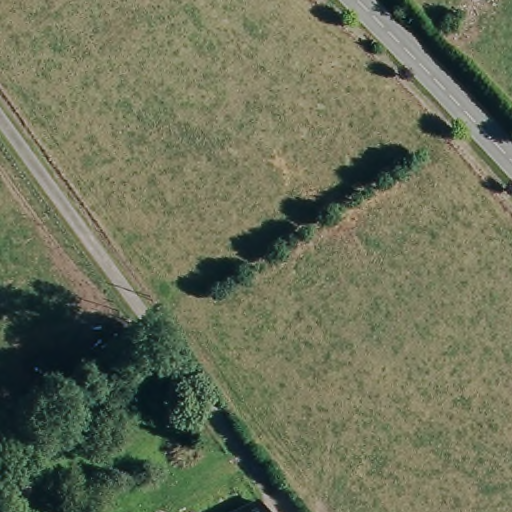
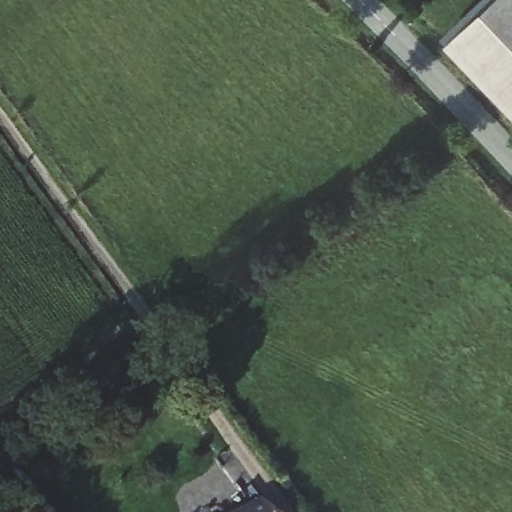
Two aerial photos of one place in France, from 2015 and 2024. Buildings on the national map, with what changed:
new [(453,33),(487,0),(512,0),(512,101),(453,33)]
unchanged [(270,512),(237,512),(262,501),(270,512)]

